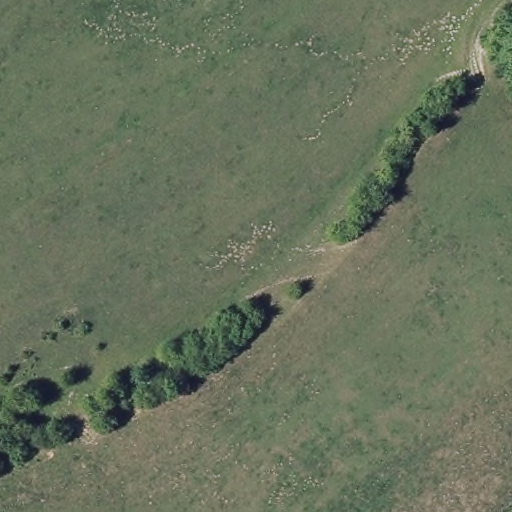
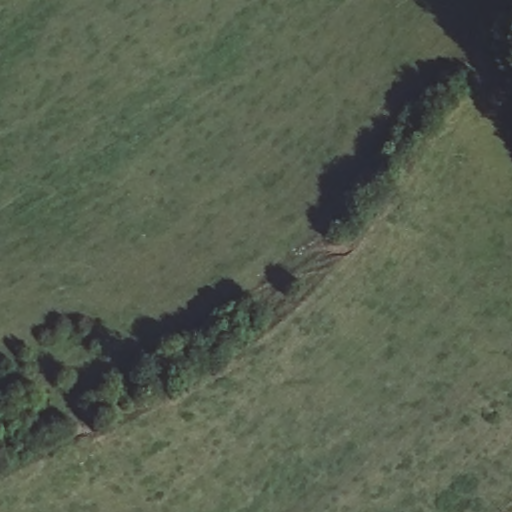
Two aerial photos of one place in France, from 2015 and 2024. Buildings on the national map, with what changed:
[]

